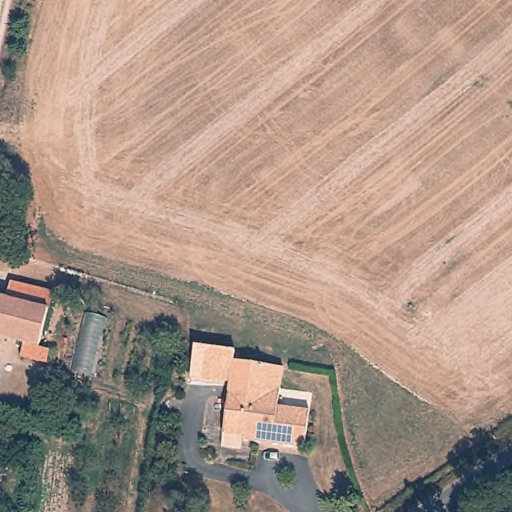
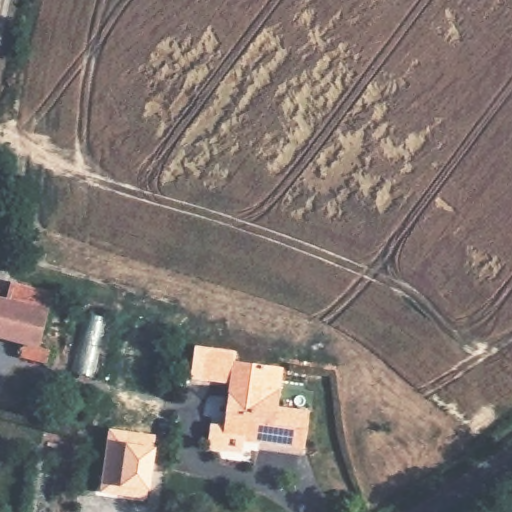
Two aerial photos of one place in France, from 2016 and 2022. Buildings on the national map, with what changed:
unchanged [(29,349),(0,341),(0,306),(3,307),(8,290),(47,300),(39,338),(53,344),(49,363),(26,357),(29,349)]
new [(227,384),(189,379),(193,345),(232,350),(227,384)]
unchanged [(242,360),(290,373),(279,411),(311,421),(301,457),(241,442),(241,435),(223,430),(236,380),(242,360)]
new [(109,427),(156,434),(155,446),(149,489),(148,499),(99,491),(109,427)]

